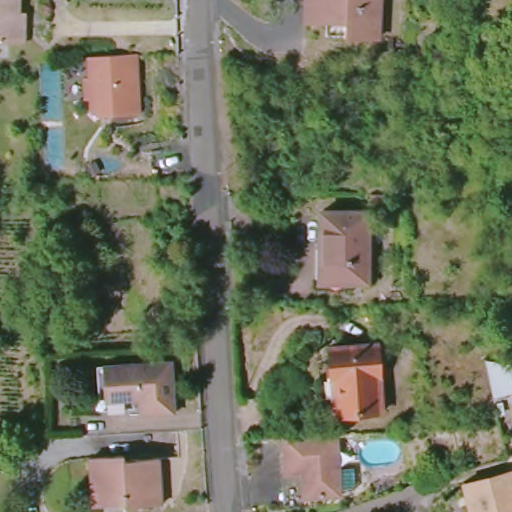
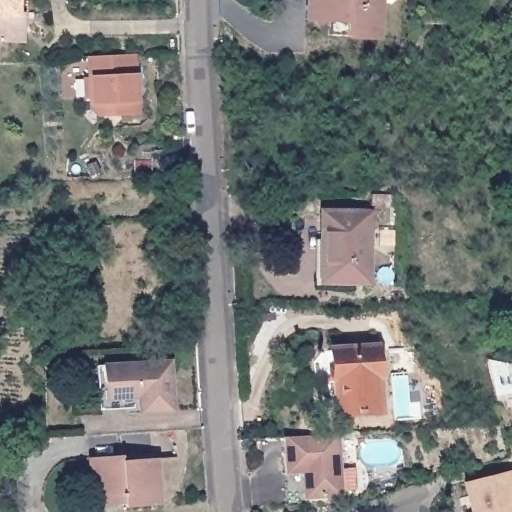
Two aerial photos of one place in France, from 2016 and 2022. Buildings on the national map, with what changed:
unchanged [(20,43),(14,43),(0,43),(0,0),(13,0),(13,14),(19,14),(20,43)]
unchanged [(322,20),(300,18),(300,0),(377,0),(375,38),(342,36),(322,35),(322,20)]
unchanged [(139,60),(142,120),(102,122),(92,115),(92,104),(87,105),(86,84),(91,84),(90,63),(139,60)]
unchanged [(385,194),(386,205),(365,205),(365,194),(385,194)]
unchanged [(363,212),(362,285),(320,283),(321,241),(315,241),(315,212),(363,212)]
unchanged [(374,340),(379,408),(330,411),(325,344),(374,340)]
unchanged [(95,364),(163,360),(166,412),(130,413),(129,398),(97,400),(95,364)]
unchanged [(512,394),(495,398),(485,360),(512,365),(512,394)]
unchanged [(345,491),(331,491),(331,496),(295,497),(293,472),(276,472),(274,438),(327,435),(330,468),(345,468),(345,491)]
unchanged [(88,485),(86,457),(120,455),(121,460),(155,458),(160,506),(122,508),(122,503),(97,505),(90,505),(88,485)]
unchanged [(511,472),(512,476),(512,512),(467,512),(460,485),(511,472)]

